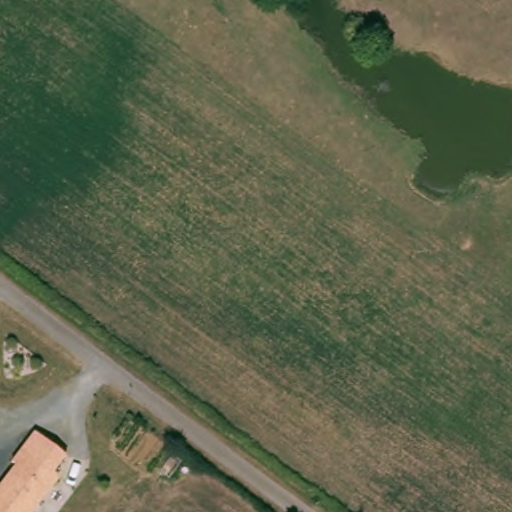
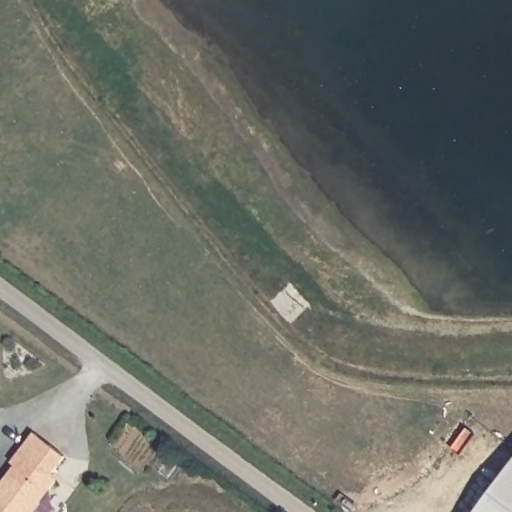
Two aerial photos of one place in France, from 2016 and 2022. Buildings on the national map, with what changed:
unchanged [(50,474),(57,480),(33,512),(0,512),(0,486),(14,467),(9,463),(30,433),(63,457),(50,474)]
new [(512,512),(476,512),(512,463),(512,512)]

